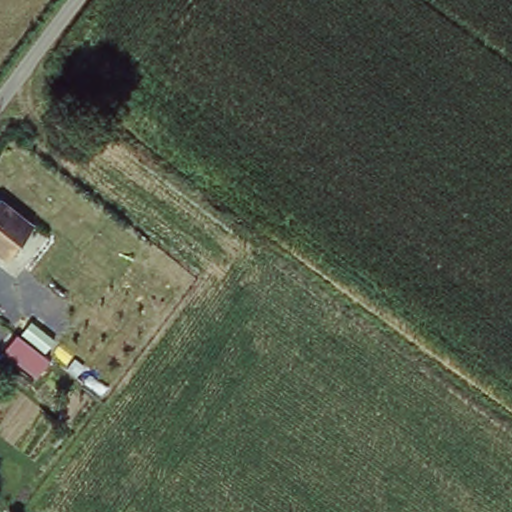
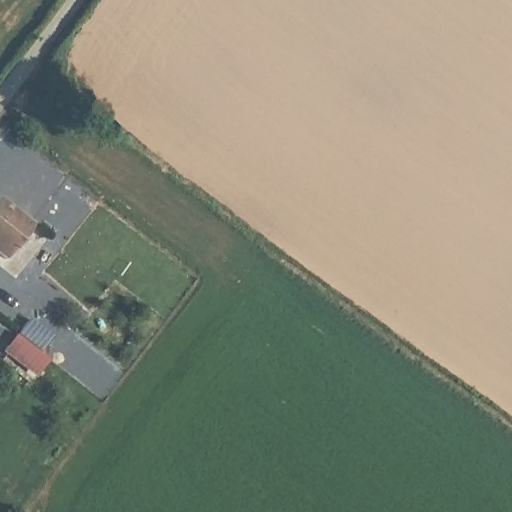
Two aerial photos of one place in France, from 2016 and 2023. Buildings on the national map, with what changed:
unchanged [(0,253),(0,198),(31,224),(4,257),(0,253)]
unchanged [(17,343),(50,368),(39,383),(5,357),(17,343)]

